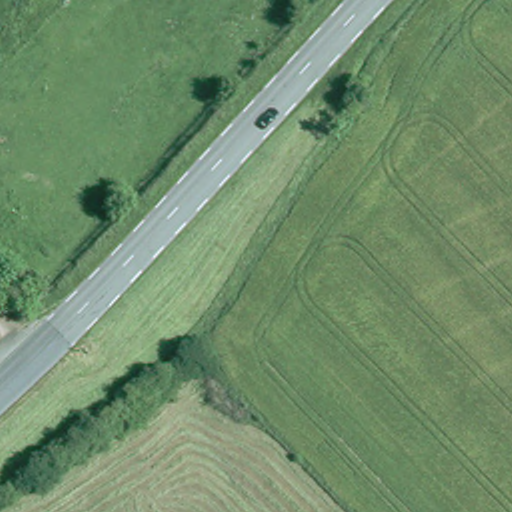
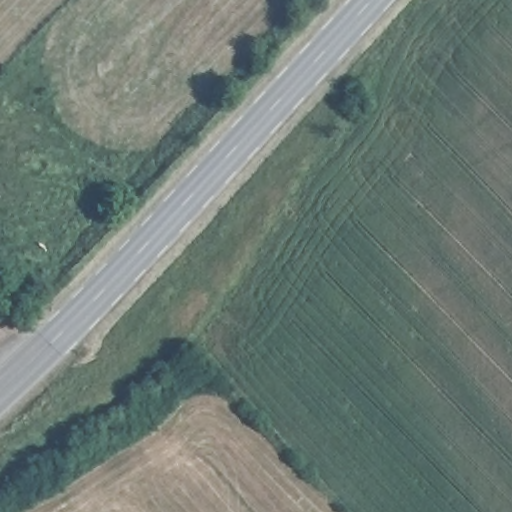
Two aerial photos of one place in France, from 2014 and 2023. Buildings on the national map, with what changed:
[]

